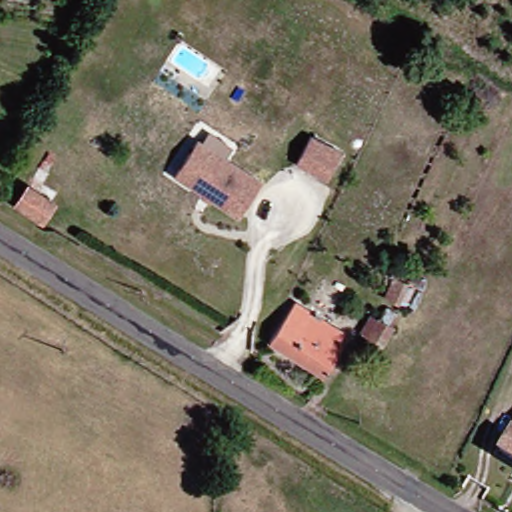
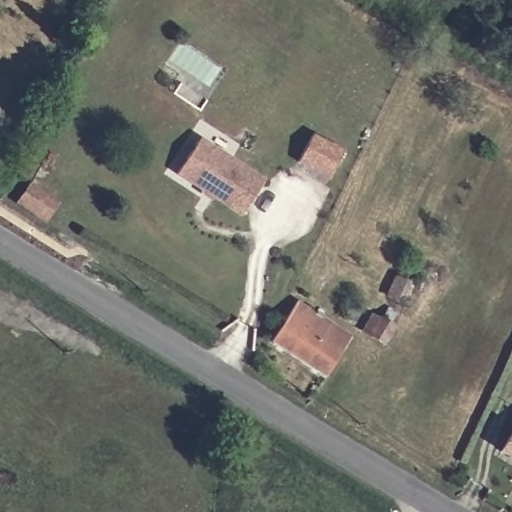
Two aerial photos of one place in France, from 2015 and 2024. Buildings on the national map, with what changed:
unchanged [(326,179),(295,162),(310,135),(341,152),(326,179)]
unchanged [(260,187),(239,220),(175,177),(196,143),(260,187)]
unchanged [(10,204),(23,184),(55,205),(41,225),(10,204)]
unchanged [(345,314),(336,309),(342,296),(353,301),(345,314)]
unchanged [(264,341),(286,303),(340,337),(317,374),(264,341)]
unchanged [(490,446),(512,411),(512,460),(490,446)]

